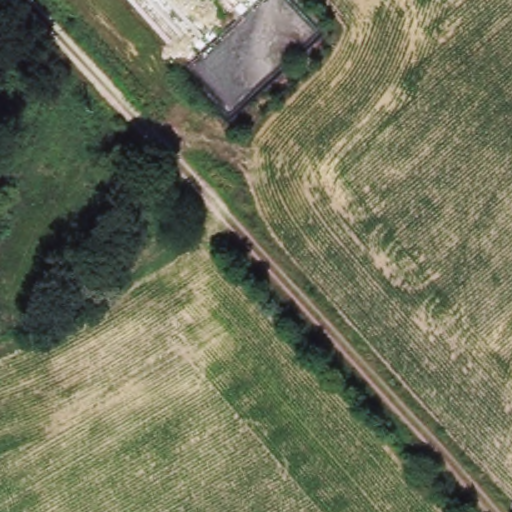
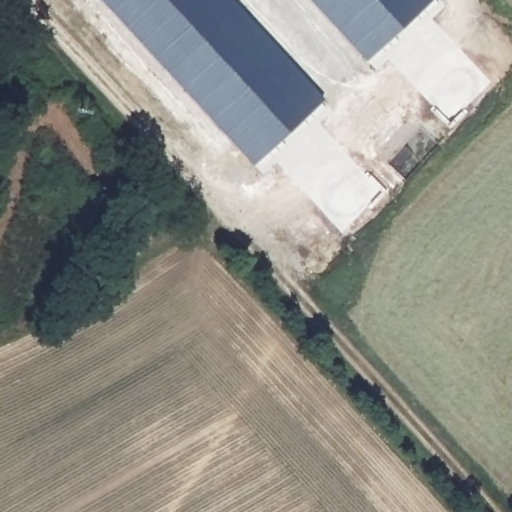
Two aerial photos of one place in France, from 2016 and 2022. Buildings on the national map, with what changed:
new [(254,165),(101,0),(234,0),(325,99),(254,165)]
demolished [(179,62),(123,0),(188,0),(215,30),(179,62)]
demolished [(217,0),(247,0),(230,15),(217,0)]
new [(312,0),(431,0),(368,60),(312,0)]

